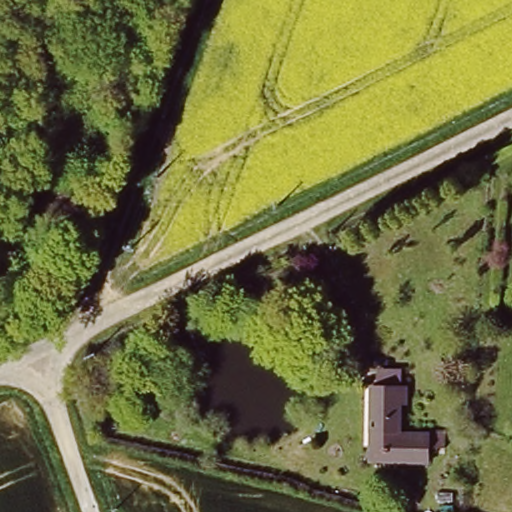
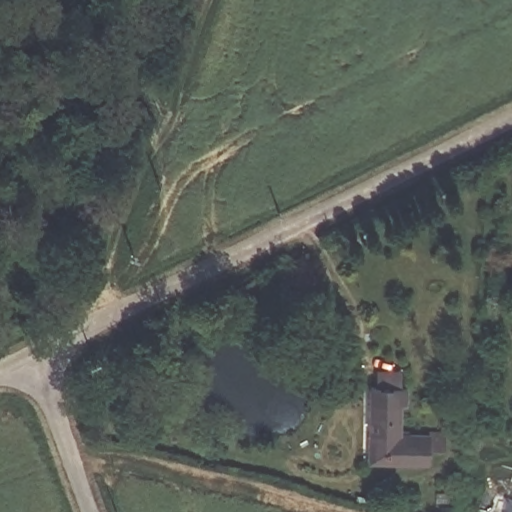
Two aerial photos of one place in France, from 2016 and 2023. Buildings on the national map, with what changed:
unchanged [(405,460),(367,454),(373,398),(375,379),(406,384),(403,403),(397,402),(395,429),(432,436),(429,456),(423,454),(422,463),(405,460)]

